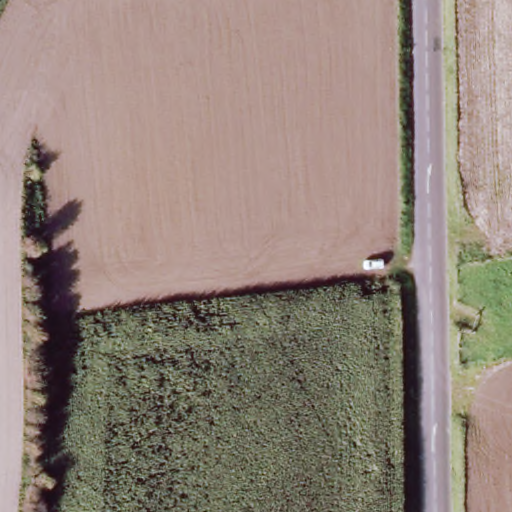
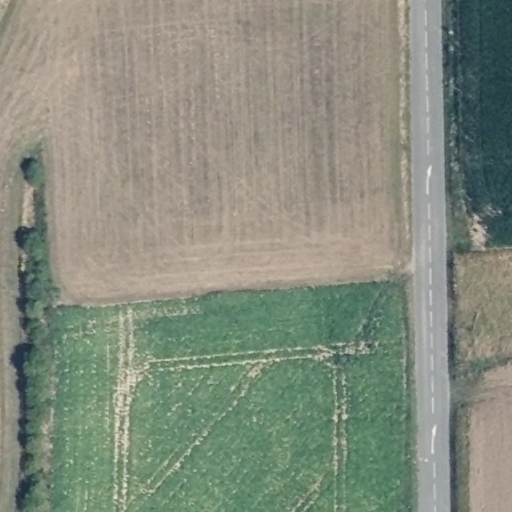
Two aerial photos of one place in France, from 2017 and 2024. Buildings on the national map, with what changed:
[]

